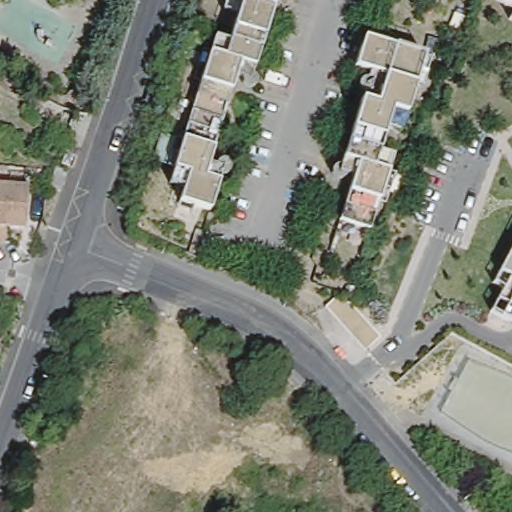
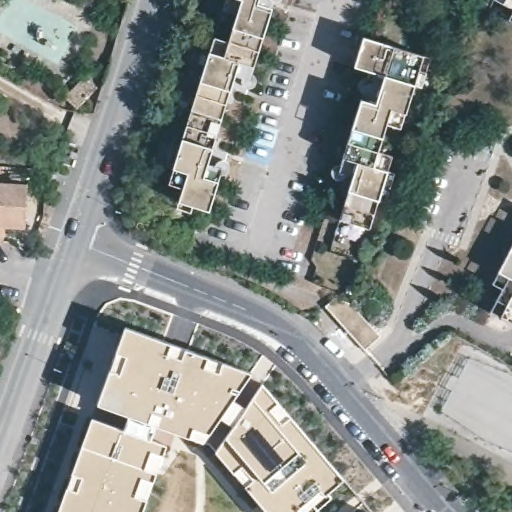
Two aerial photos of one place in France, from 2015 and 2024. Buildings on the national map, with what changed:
unchanged [(180,201),(190,171),(175,166),(177,156),(169,154),(175,136),(183,139),(205,66),(197,64),(202,49),(210,52),(215,36),(227,41),(235,14),(224,10),(227,0),(276,0),(273,10),(255,71),(251,84),(235,79),(210,164),(222,168),(218,181),(210,210),(180,201)]
unchanged [(511,10),(493,0),(512,0),(512,22),(507,20),(511,10)]
unchanged [(386,182),(373,226),(340,215),(355,170),(337,165),(339,160),(360,95),(368,65),(358,61),(368,34),(429,53),(435,55),(425,84),(420,83),(411,108),(406,124),(390,119),(381,146),(396,151),(391,166),(400,169),(395,185),(386,182)]
unchanged [(50,188),(56,168),(68,173),(61,191),(55,191),(50,188)]
unchanged [(28,186),(25,228),(5,227),(5,241),(0,240),(0,184),(28,186)]
unchanged [(498,290),(490,285),(512,247),(512,320),(488,308),(498,290)]
new [(252,373),(235,399),(247,407),(253,398),(262,384),(345,479),(304,512),(270,512),(217,452),(226,437),(235,425),(222,415),(203,440),(161,426),(155,441),(168,447),(145,512),(58,512),(91,417),(122,427),(126,413),(98,402),(126,327),(252,373)]
demolished [(320,410),(311,418),(300,406),(309,397),(320,410)]

